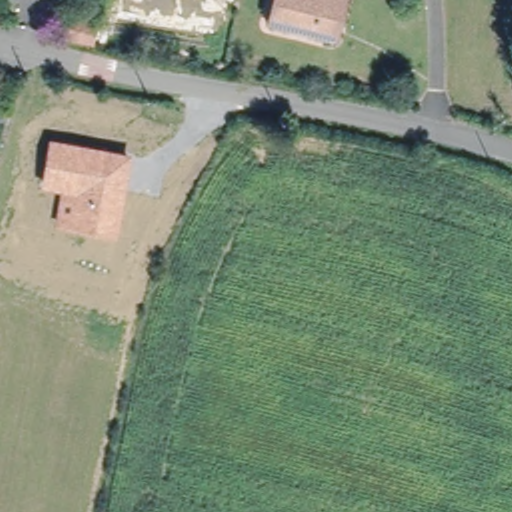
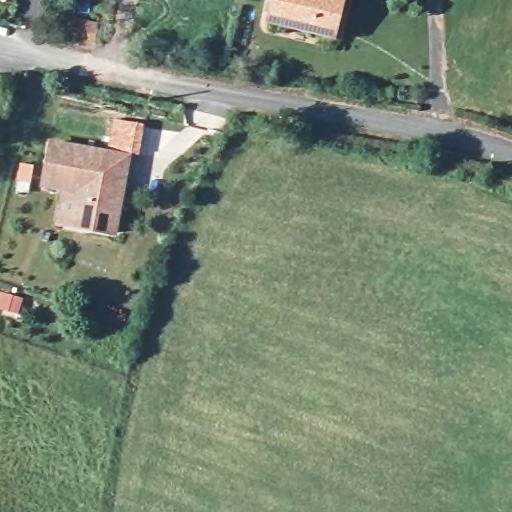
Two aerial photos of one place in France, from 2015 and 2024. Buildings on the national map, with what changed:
unchanged [(340,0),(331,31),(273,14),(277,0),(340,0)]
unchanged [(72,42),(75,25),(105,31),(102,48),(72,42)]
unchanged [(132,155),(117,239),(54,226),(60,193),(40,189),(48,140),(132,155)]

